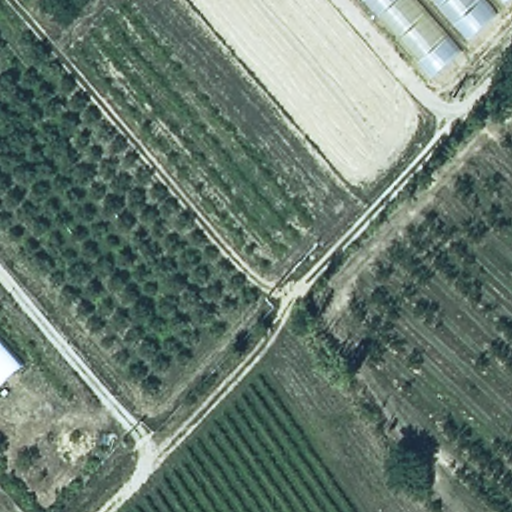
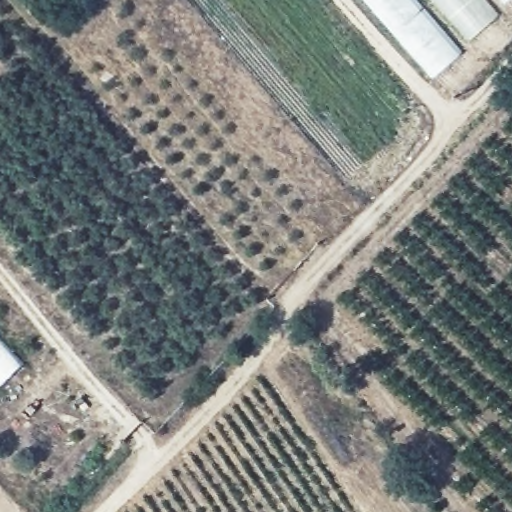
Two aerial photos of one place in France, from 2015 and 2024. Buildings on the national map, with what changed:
unchanged [(360,0),(512,0),(512,1),(432,82),(360,0)]
unchanged [(0,386),(0,342),(22,365),(0,386)]

